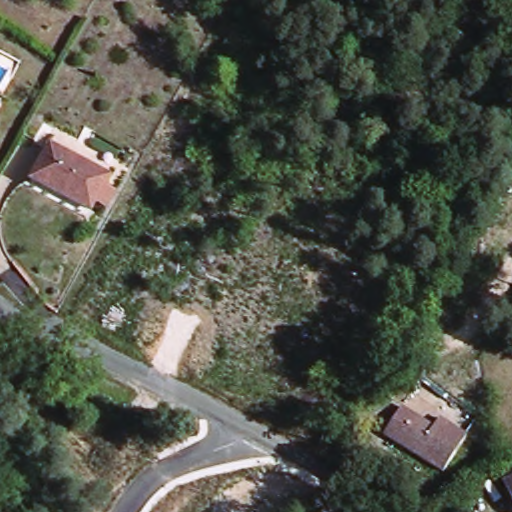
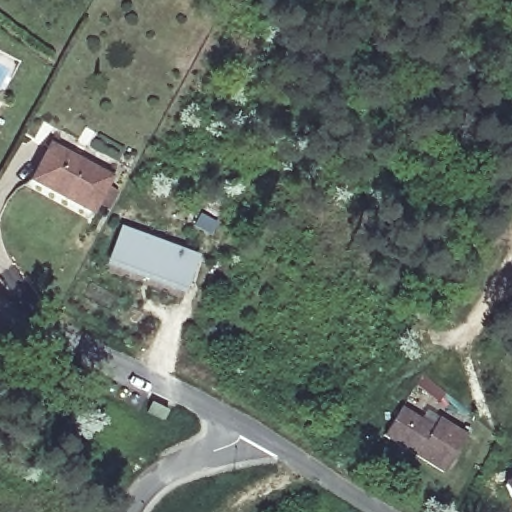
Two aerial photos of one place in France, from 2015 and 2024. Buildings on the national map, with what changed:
unchanged [(7,114),(0,128),(0,110),(7,114)]
unchanged [(110,207),(99,200),(94,209),(37,175),(57,140),(114,174),(110,180),(120,187),(110,207)]
new [(107,261),(119,226),(198,256),(184,290),(107,261)]
unchanged [(395,433),(412,406),(443,427),(449,415),(478,433),(455,470),(395,433)]

